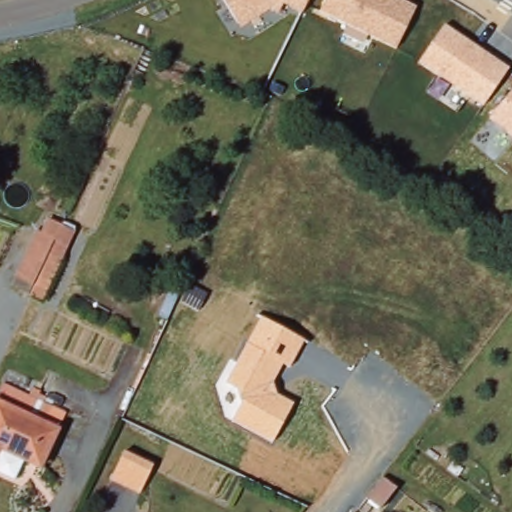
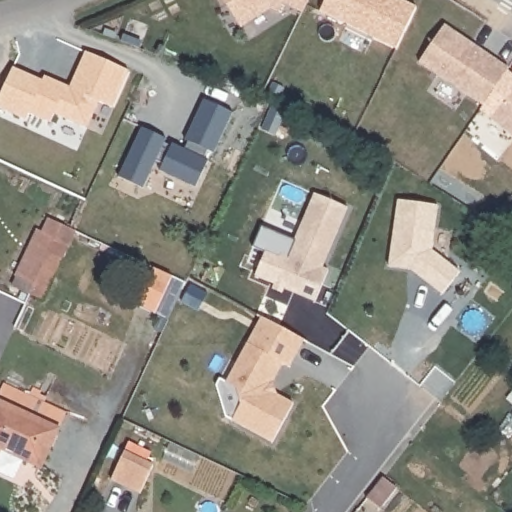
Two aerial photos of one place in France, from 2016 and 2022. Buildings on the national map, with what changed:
unchanged [(308,0),(302,13),(283,5),(280,12),(269,9),(241,29),(223,0),(308,0)]
unchanged [(402,0),(417,7),(399,49),(368,35),(363,44),(342,34),(343,32),(346,25),(319,12),(324,0),(402,0)]
unchanged [(442,25),(507,68),(482,105),(417,62),(442,25)]
new [(87,128),(53,112),(49,122),(28,112),(26,119),(0,106),(0,97),(14,67),(43,81),(44,76),(70,87),(85,52),(128,71),(113,106),(99,100),(87,128)]
unchanged [(512,90),(512,135),(490,117),(512,90)]
new [(119,177),(142,127),(185,149),(189,140),(186,138),(203,100),(234,112),(215,152),(208,149),(205,158),(208,160),(197,187),(159,171),(164,162),(157,159),(143,189),(119,177)]
new [(284,289),(283,294),(272,290),(275,285),(254,276),(265,251),(279,257),(282,250),(289,252),(314,193),(348,207),(324,267),(329,269),(314,301),(284,289)]
new [(398,200),(438,205),(432,250),(460,271),(442,295),(411,270),(388,267),(398,200)]
unchanged [(34,279),(38,270),(21,262),(43,216),(60,224),(74,231),(68,246),(48,286),(34,279)]
unchanged [(230,420),(239,405),(236,391),(225,385),(260,317),(303,338),(287,369),(282,367),(273,382),(276,395),(293,403),(272,443),(230,420)]
unchanged [(19,454),(9,475),(0,471),(0,401),(52,425),(35,461),(19,454)]
unchanged [(113,467),(120,450),(149,463),(136,492),(107,478),(113,467)]
unchanged [(382,477),(397,488),(380,510),(366,498),(382,477)]

